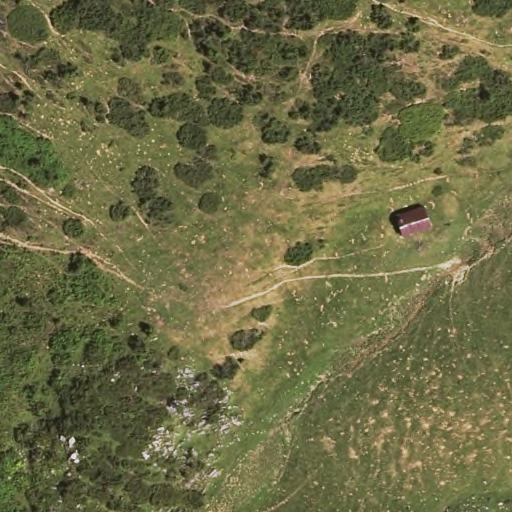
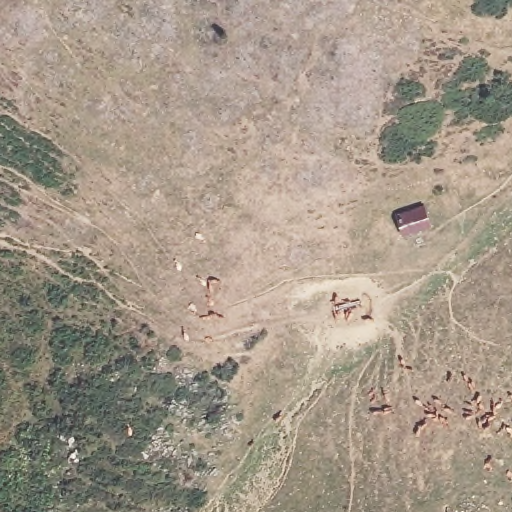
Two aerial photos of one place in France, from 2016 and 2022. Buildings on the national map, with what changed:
unchanged [(426,231),(406,236),(393,239),(386,217),(420,208),(426,231)]

